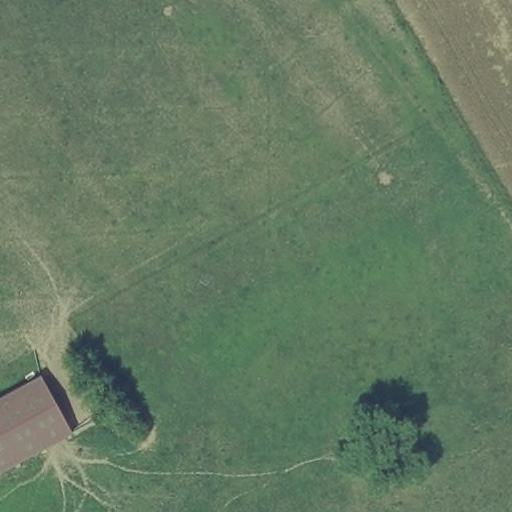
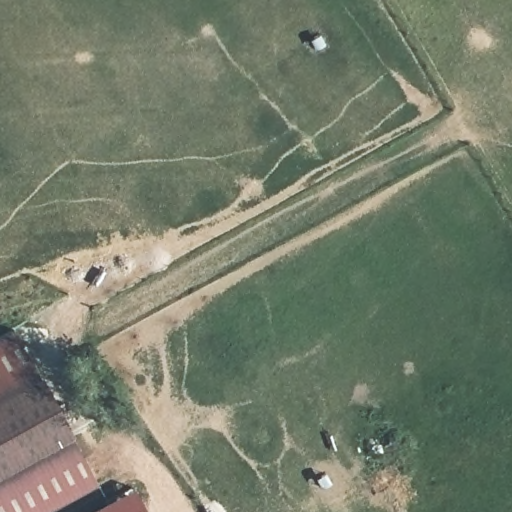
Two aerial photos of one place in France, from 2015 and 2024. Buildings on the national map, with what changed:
new [(0,335),(14,328),(41,373),(0,395),(0,335)]
unchanged [(78,436),(0,475),(0,395),(41,373),(78,436)]
new [(43,512),(0,512),(0,475),(78,436),(100,482),(43,512)]
new [(148,512),(88,512),(135,487),(148,512)]

